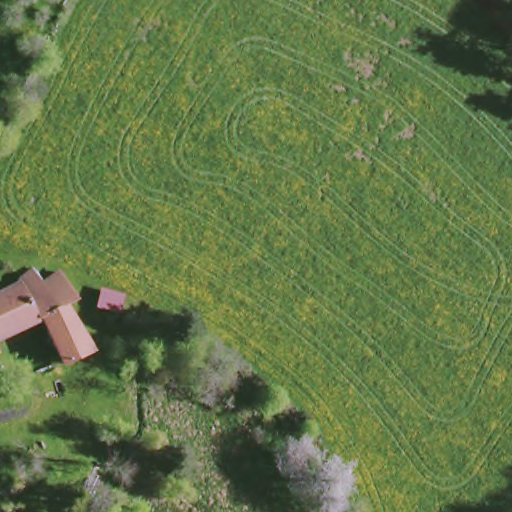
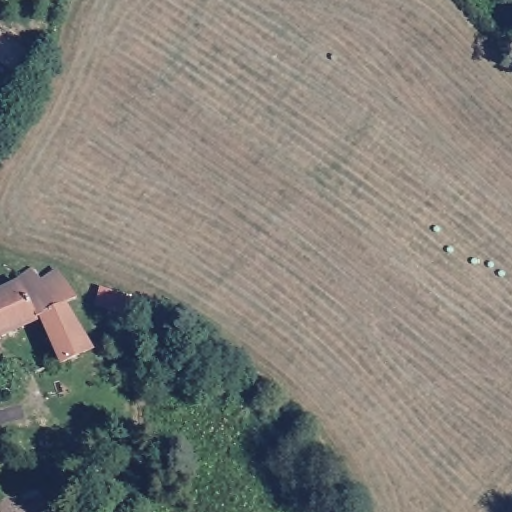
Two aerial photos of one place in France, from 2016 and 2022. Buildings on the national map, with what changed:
unchanged [(31,318),(0,330),(0,290),(12,283),(28,270),(37,281),(56,273),(73,298),(60,308),(72,326),(87,349),(57,365),(31,318)]

